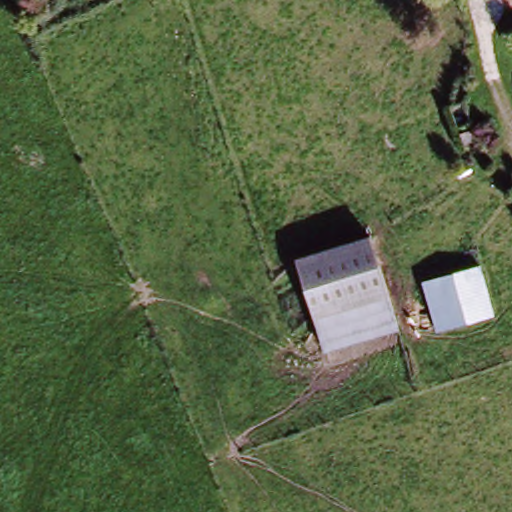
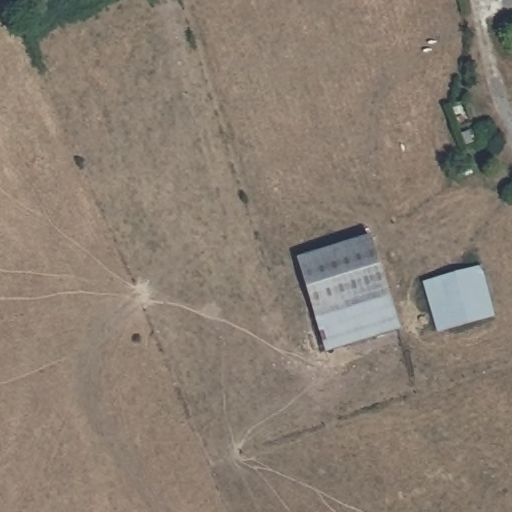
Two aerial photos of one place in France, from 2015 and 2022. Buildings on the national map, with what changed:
unchanged [(298,266),(366,237),(402,326),(334,354),(298,266)]
unchanged [(427,290),(483,267),(502,313),(446,337),(427,290)]

